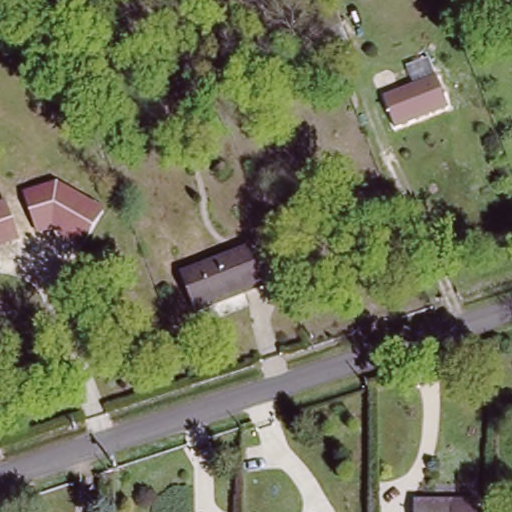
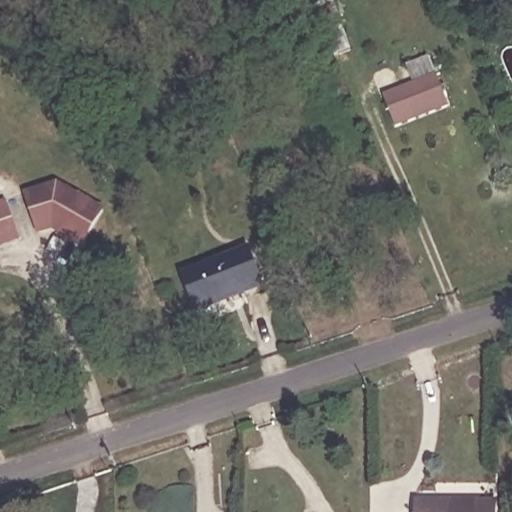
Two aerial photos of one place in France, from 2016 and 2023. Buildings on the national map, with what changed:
unchanged [(338,57),(324,62),(314,37),(328,32),(338,57)]
unchanged [(438,75),(449,103),(396,123),(385,95),(438,75)]
unchanged [(58,183),(106,212),(85,247),(53,230),(38,235),(23,194),(58,183)]
unchanged [(0,202),(3,201),(17,237),(9,240),(0,244),(0,202)]
unchanged [(246,252),(259,288),(196,311),(183,275),(246,252)]
unchanged [(416,500),(476,499),(478,512),(417,512),(416,500)]

